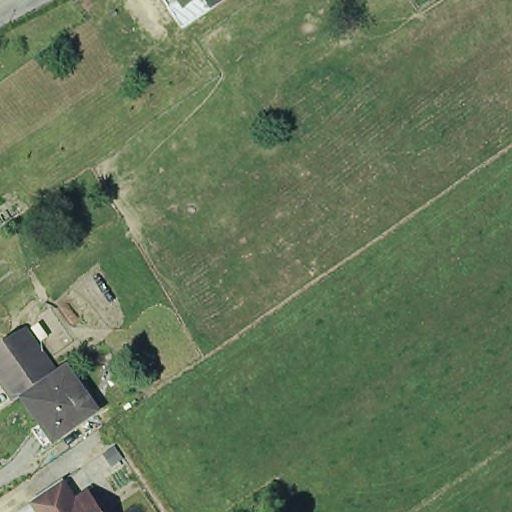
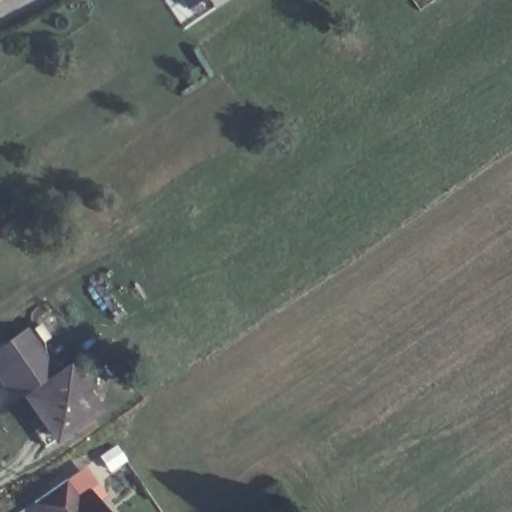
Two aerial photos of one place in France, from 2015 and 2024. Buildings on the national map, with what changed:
unchanged [(187,0),(224,0),(198,15),(187,0)]
unchanged [(16,342),(28,334),(57,376),(45,384),(18,403),(0,376),(0,353),(16,342)]
unchanged [(96,415),(44,450),(33,434),(45,426),(29,403),(69,376),(96,415)]
unchanged [(35,502),(65,482),(78,500),(88,493),(94,502),(99,512),(43,512),(35,502)]

